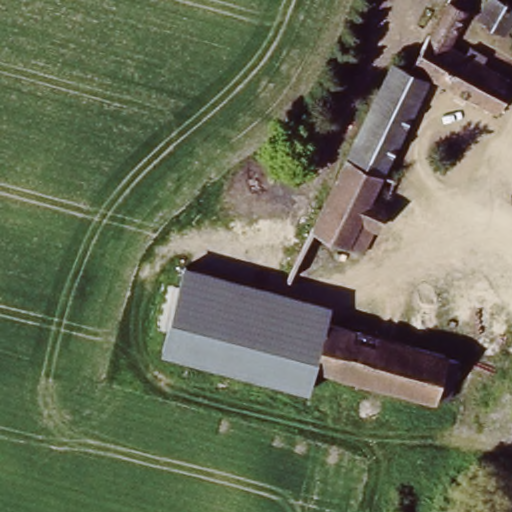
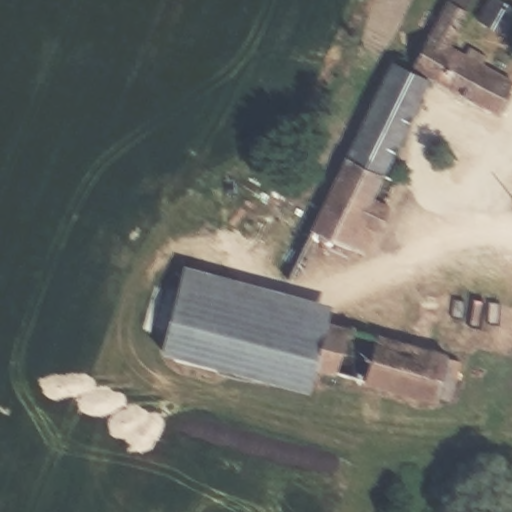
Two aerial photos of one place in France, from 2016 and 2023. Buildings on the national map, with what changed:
unchanged [(382,169),(393,174),(360,245),(347,239),(313,224),(392,55),(417,66),(447,0),(471,0),(448,49),(510,78),(495,111),(424,79),(382,169)]
unchanged [(482,0),(502,0),(512,5),(512,14),(500,35),(475,24),(482,0)]
unchanged [(317,376),(308,395),(157,355),(182,265),(330,303),(328,325),(317,376)]
unchanged [(460,361),(447,407),(320,374),(325,351),(335,353),(342,330),(460,361)]

